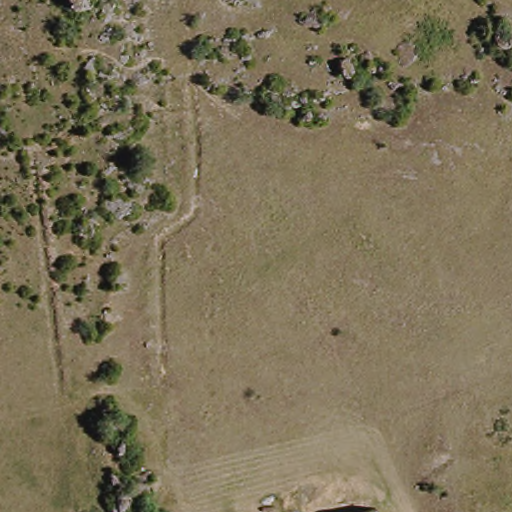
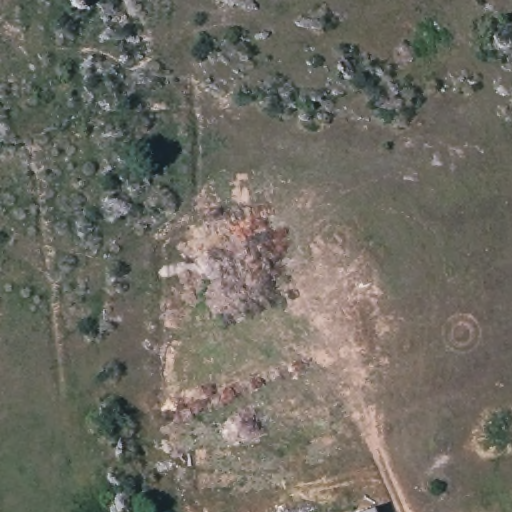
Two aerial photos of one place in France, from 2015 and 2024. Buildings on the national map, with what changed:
unchanged [(373,512),(369,512),(373,511),(373,512)]

